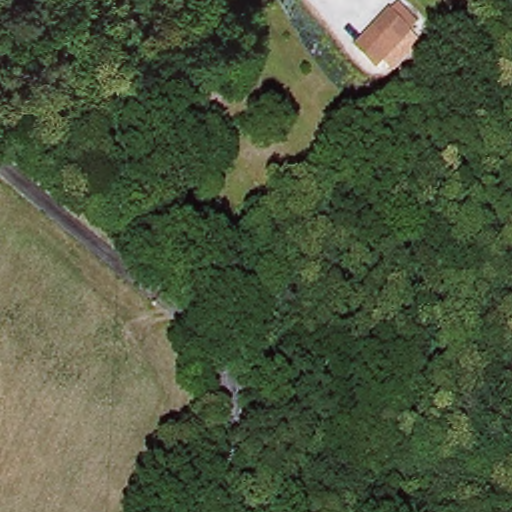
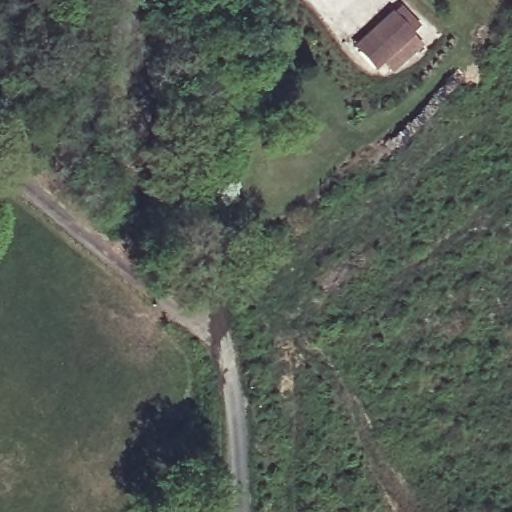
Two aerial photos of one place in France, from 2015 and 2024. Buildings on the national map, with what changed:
unchanged [(368,32),(393,7),(415,30),(377,64),(365,51),(357,42),(368,32)]

